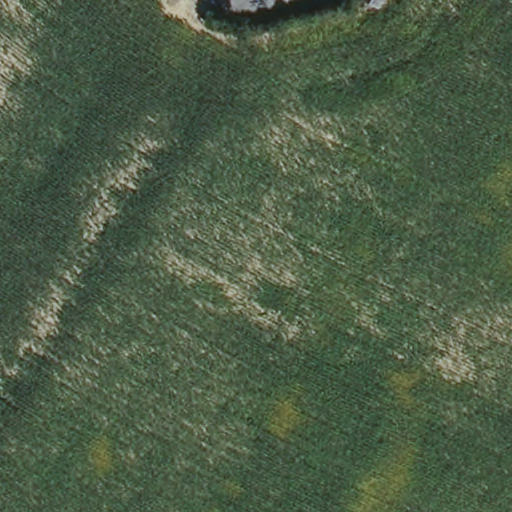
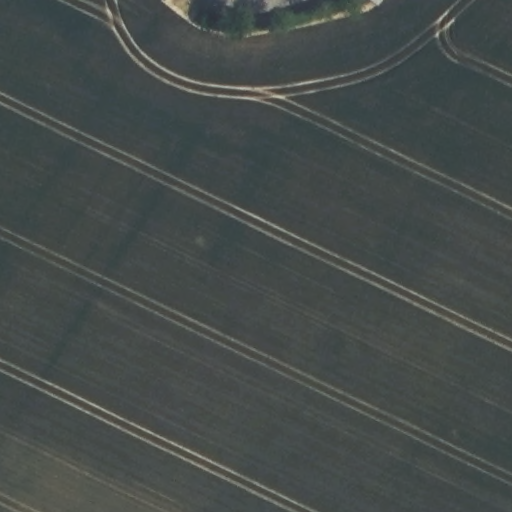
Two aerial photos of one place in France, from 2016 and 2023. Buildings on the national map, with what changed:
unchanged [(373,1),(372,0),(374,0),(373,1)]

